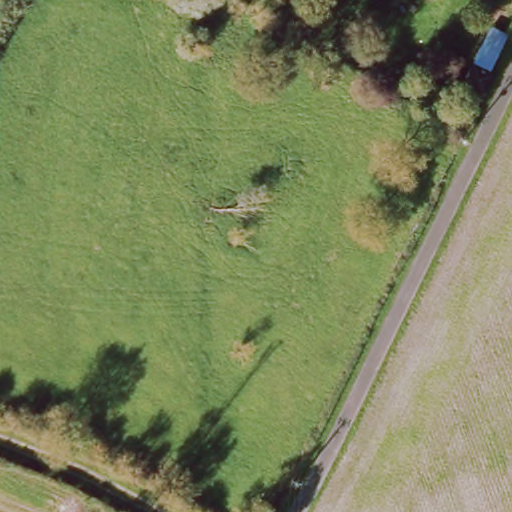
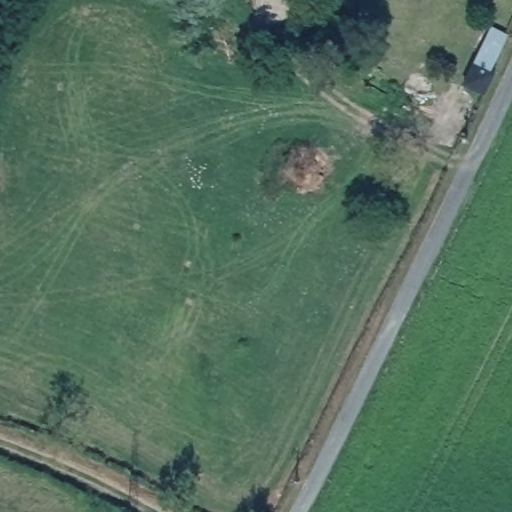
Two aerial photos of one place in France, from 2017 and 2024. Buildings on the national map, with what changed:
unchanged [(475,65),(492,29),(507,37),(490,73),(475,65)]

